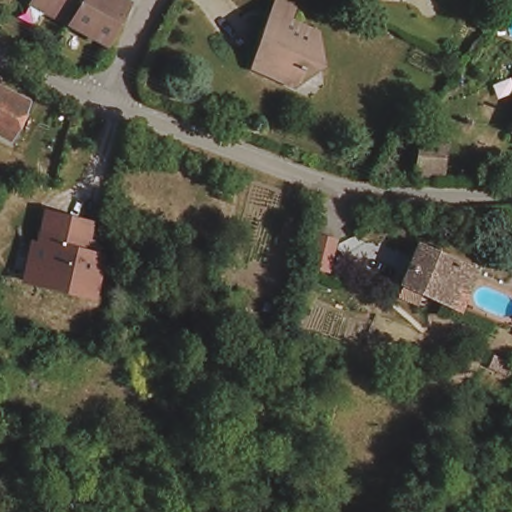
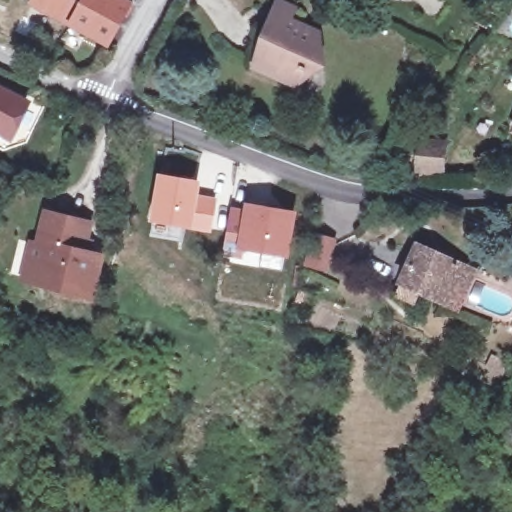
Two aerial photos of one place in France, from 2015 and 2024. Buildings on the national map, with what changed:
unchanged [(36,0),(126,0),(105,38),(36,0)]
unchanged [(268,31),(279,7),(282,0),(298,9),(295,15),(294,21),(324,35),(326,65),(309,65),(299,86),(279,77),(253,65),(268,31)]
unchanged [(32,100),(16,132),(0,125),(0,83),(32,100)]
unchanged [(420,166),(415,166),(420,132),(445,137),(441,170),(427,167),(426,174),(420,172),(420,166)]
new [(211,232),(190,229),(147,221),(155,171),(199,180),(197,193),(217,196),(211,232)]
new [(242,201),(296,210),(287,258),(235,251),(234,258),(221,256),(230,205),(242,206),(242,201)]
unchanged [(38,246),(44,247),(50,218),(85,226),(95,229),(90,247),(95,249),(93,258),(103,261),(95,299),(48,287),(29,282),(38,246)]
unchanged [(340,239),(329,275),(308,271),(320,234),(340,239)]
unchanged [(401,274),(416,236),(467,255),(474,258),(469,271),(461,269),(451,294),(401,274)]

